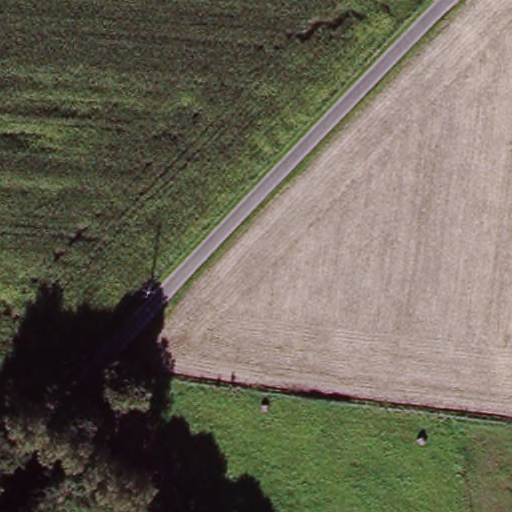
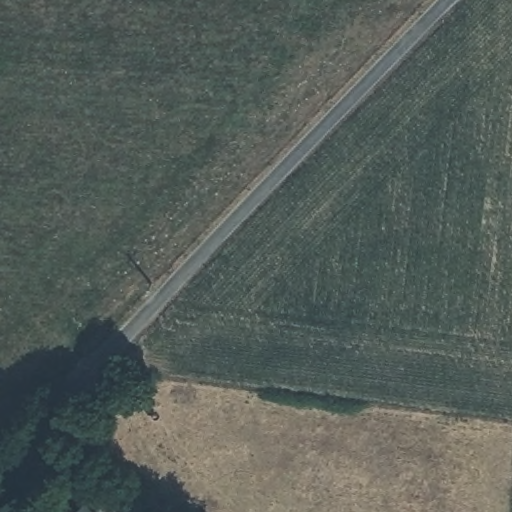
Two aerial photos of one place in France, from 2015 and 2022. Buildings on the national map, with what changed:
unchanged [(76,512),(84,502),(96,512),(76,512)]

